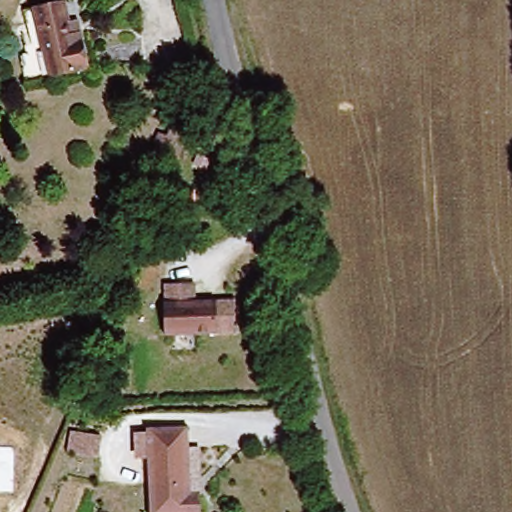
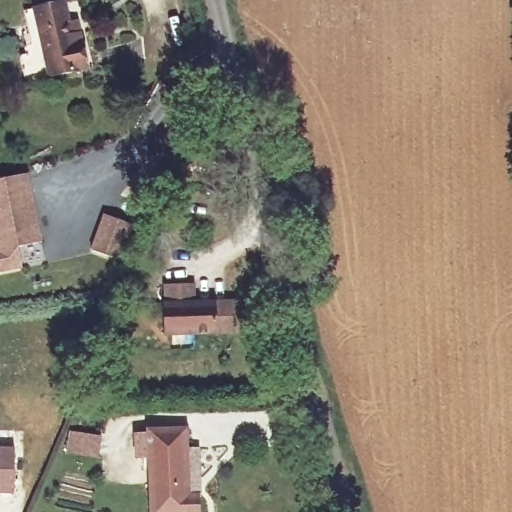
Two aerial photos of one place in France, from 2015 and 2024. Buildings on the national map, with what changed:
unchanged [(30,51),(37,49),(35,41),(42,39),(35,5),(59,0),(74,0),(77,18),(87,16),(89,28),(96,63),(35,77),(30,51)]
unchanged [(189,131),(182,146),(165,139),(172,123),(189,131)]
new [(44,241),(18,248),(22,268),(0,274),(0,180),(29,174),(44,241)]
new [(134,226),(121,261),(90,249),(103,214),(134,226)]
unchanged [(239,336),(167,336),(167,305),(170,305),(170,287),(197,287),(197,305),(239,305),(239,336)]
unchanged [(194,490),(204,489),(205,512),(204,512),(155,512),(152,424),(190,423),(194,490)]
new [(72,434),(102,438),(100,458),(70,454),(72,434)]
new [(14,446),(14,493),(0,493),(0,446),(14,446)]

